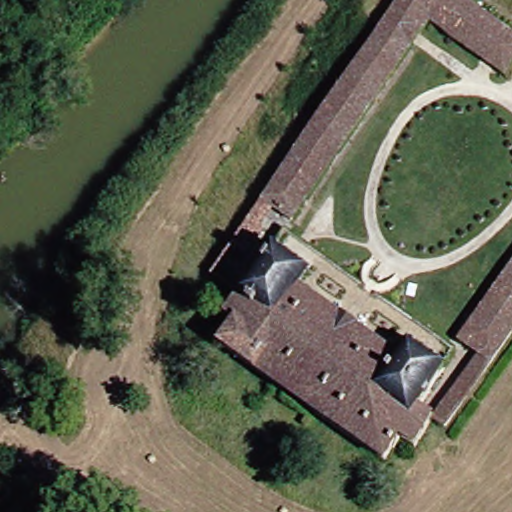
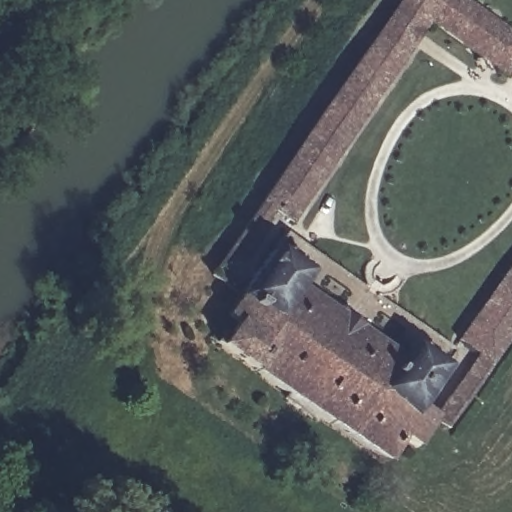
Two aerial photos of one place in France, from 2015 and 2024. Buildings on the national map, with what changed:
unchanged [(512,61),(506,69),(428,17),(283,230),(256,210),(398,0),(466,0),(512,32),(512,61)]
unchanged [(416,444),(400,433),(384,454),(320,409),(316,415),(282,392),(287,386),(214,334),(243,291),(278,239),(317,266),(309,280),(404,348),(414,333),(451,358),(419,405),(435,418),(416,444)]
unchanged [(462,344),(512,273),(512,334),(447,427),(435,418),(479,356),(462,344)]

